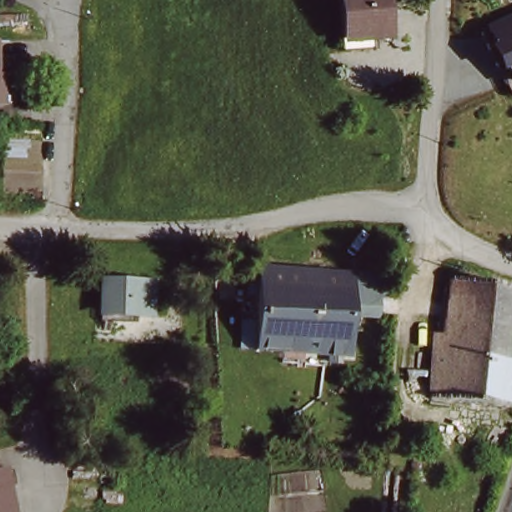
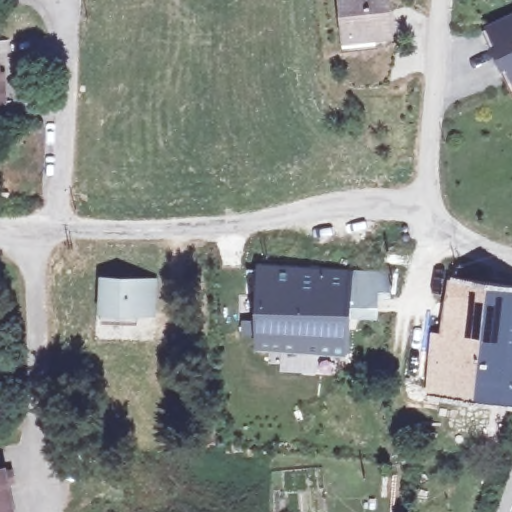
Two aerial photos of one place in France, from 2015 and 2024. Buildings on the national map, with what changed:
unchanged [(393,31),(353,35),(349,0),(390,0),(393,31)]
unchanged [(489,27),(512,16),(512,80),(507,83),(482,30),(489,27)]
unchanged [(3,70),(4,100),(0,100),(0,70),(3,70)]
unchanged [(428,397),(433,333),(441,334),(444,316),(452,276),(484,281),(512,285),(512,408),(474,402),(428,397)]
unchanged [(152,311),(101,308),(102,277),(153,280),(152,311)]
unchanged [(353,367),(303,364),(277,362),(246,360),(247,345),(260,346),(262,281),(277,282),(295,283),(353,287),(353,285),(395,286),(395,309),(354,307),(354,340),(353,367)]
unchanged [(0,512),(0,471),(2,470),(3,472),(10,470),(12,481),(5,482),(11,512),(0,512)]

